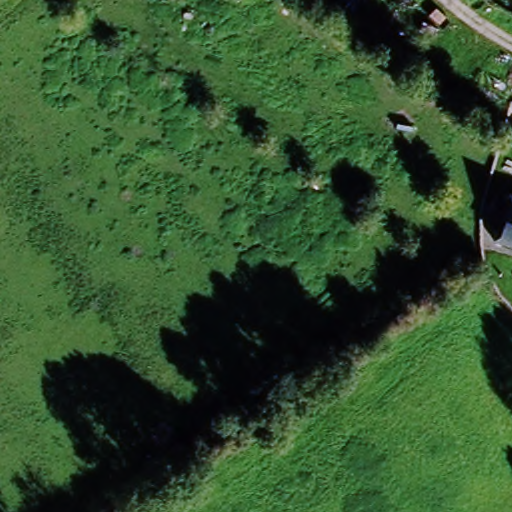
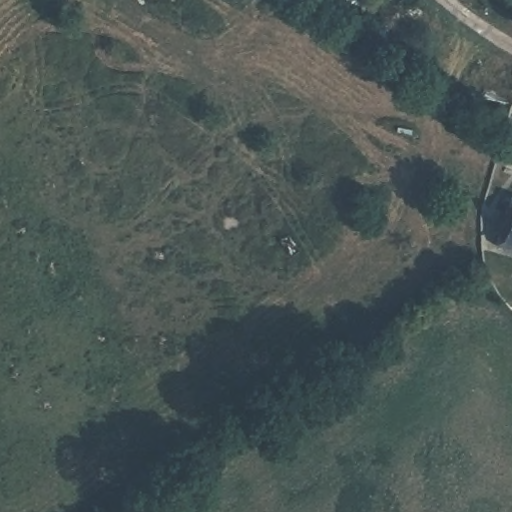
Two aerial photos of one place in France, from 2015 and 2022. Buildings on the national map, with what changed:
unchanged [(500,195),(512,200),(512,248),(485,240),(500,195)]

